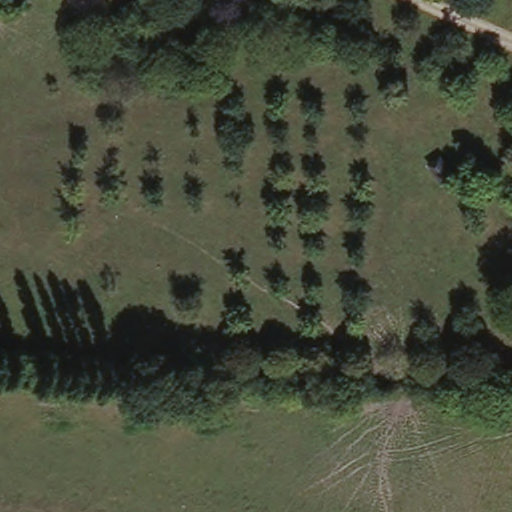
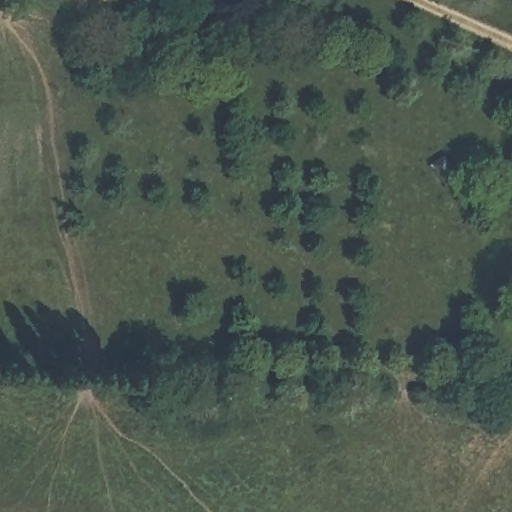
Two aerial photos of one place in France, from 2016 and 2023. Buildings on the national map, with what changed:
unchanged [(442,157),(457,180),(444,187),(430,164),(442,157)]

